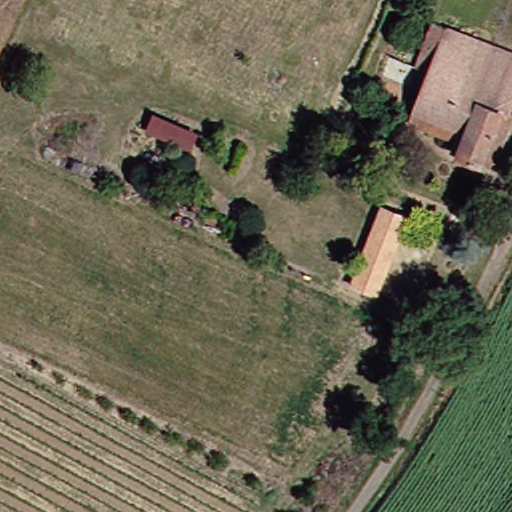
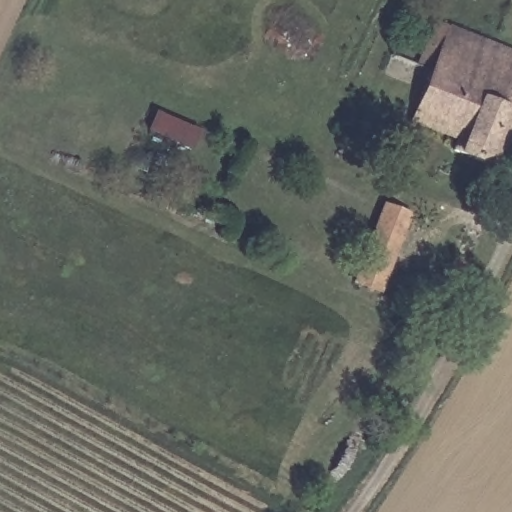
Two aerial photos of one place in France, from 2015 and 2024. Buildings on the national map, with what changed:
unchanged [(512,55),(512,77),(499,110),(494,109),(472,162),(447,152),(455,130),(414,114),(411,124),(398,119),(419,69),(407,64),(424,20),(512,55)]
unchanged [(144,110),(189,130),(180,149),(135,130),(144,110)]
unchanged [(372,205),(396,214),(367,290),(343,281),(372,205)]

